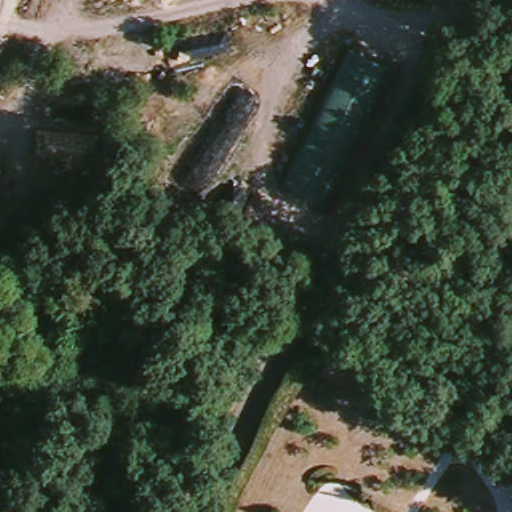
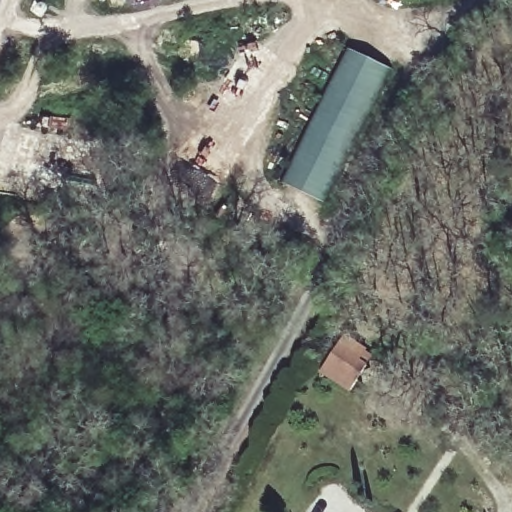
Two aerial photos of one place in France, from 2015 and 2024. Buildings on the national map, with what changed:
unchanged [(392,67),(324,209),(280,186),(348,46),(392,67)]
new [(321,373),(347,335),(362,345),(357,352),(372,362),(352,393),(321,373)]

